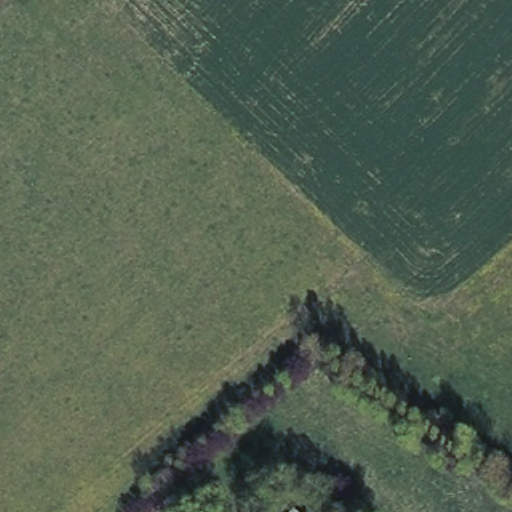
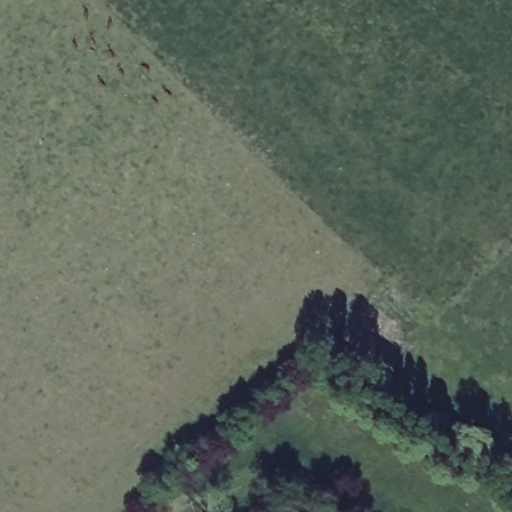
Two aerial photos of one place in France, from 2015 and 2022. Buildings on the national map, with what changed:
unchanged [(295,508),(299,512),(291,512),(295,508)]

